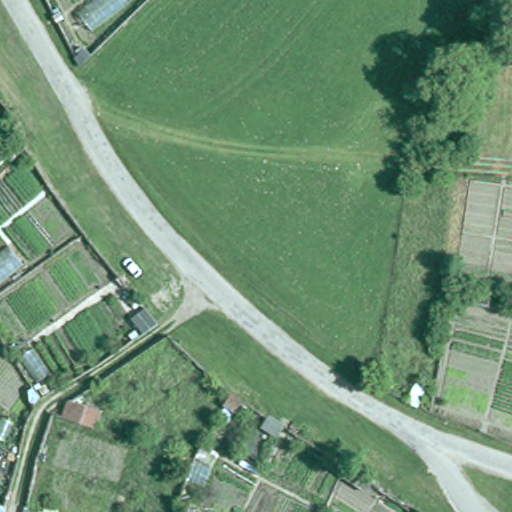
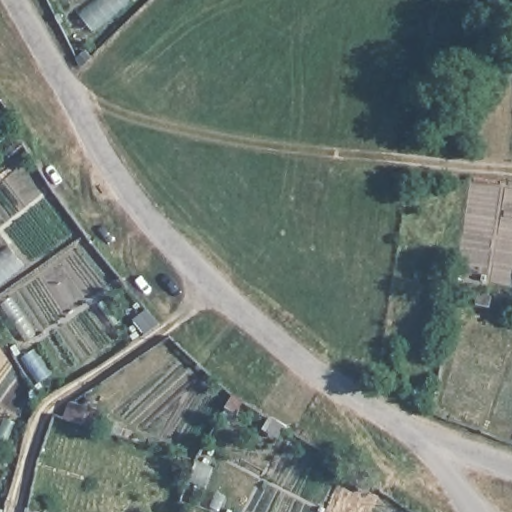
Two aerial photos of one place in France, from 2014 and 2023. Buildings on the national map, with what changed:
unchanged [(79,13),(94,0),(125,0),(93,27),(79,13)]
unchanged [(83,65),(78,55),(92,43),(98,51),(83,65)]
unchanged [(477,304),(479,293),(492,296),(490,307),(477,304)]
unchanged [(160,323),(147,332),(139,321),(151,312),(160,323)]
unchanged [(431,411),(420,406),(422,392),(434,396),(431,411)]
unchanged [(234,394),(245,402),(239,412),(227,406),(234,394)]
unchanged [(65,416),(70,400),(87,406),(82,421),(65,416)]
unchanged [(355,482),(342,475),(329,467),(335,456),(347,464),(360,472),(355,482)]
unchanged [(27,511),(32,512),(27,512),(27,511)]

